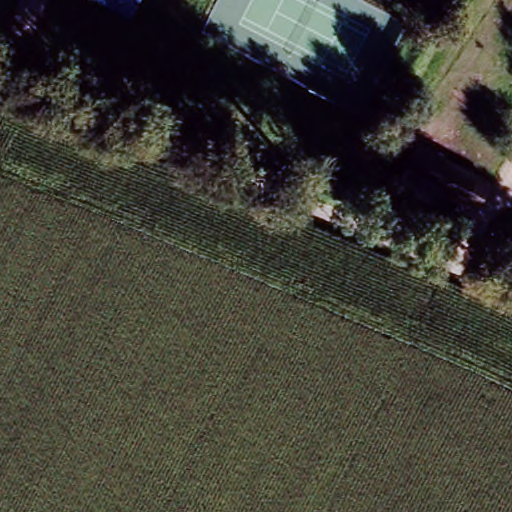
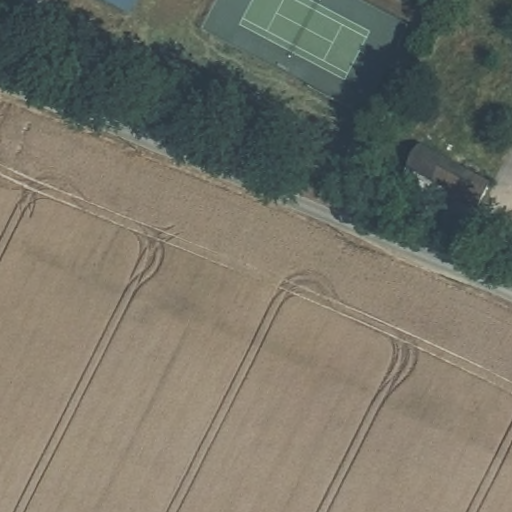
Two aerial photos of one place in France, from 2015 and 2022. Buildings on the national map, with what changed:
unchanged [(134,0),(127,12),(105,0),(134,0)]
unchanged [(400,171),(413,146),(488,187),(475,211),(400,171)]

